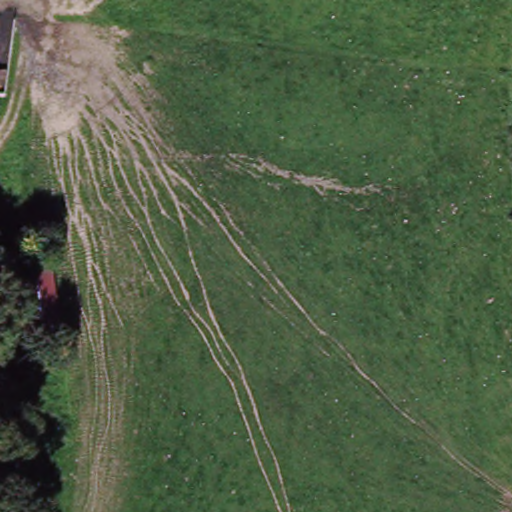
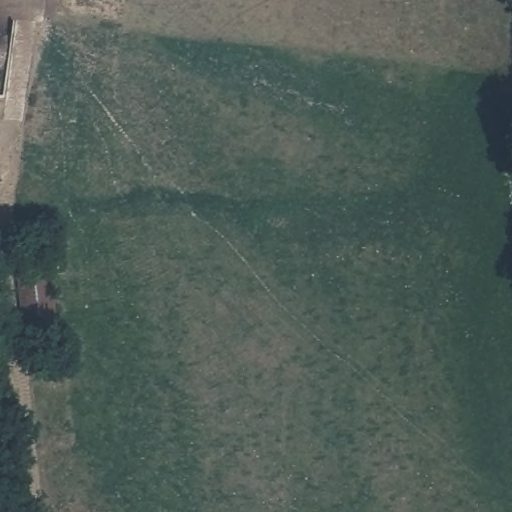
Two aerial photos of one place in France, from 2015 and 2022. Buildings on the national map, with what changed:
unchanged [(21,344),(12,267),(50,262),(58,339),(21,344)]

